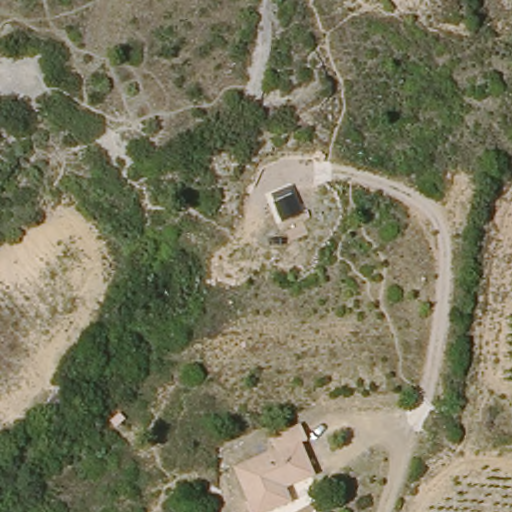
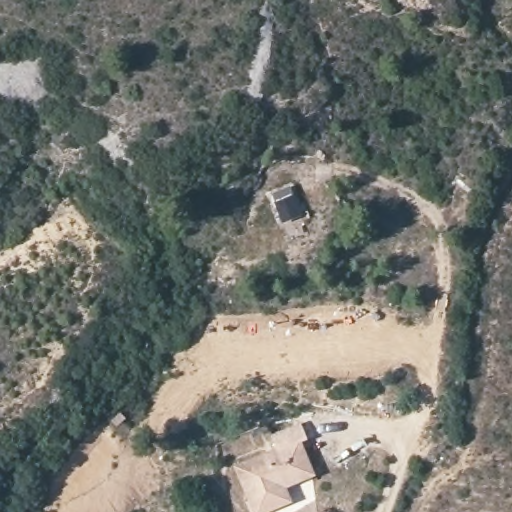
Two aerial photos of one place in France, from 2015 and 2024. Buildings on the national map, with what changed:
unchanged [(271,194),(294,186),(304,214),(281,222),(271,194)]
unchanged [(259,511),(238,465),(279,446),(275,436),(299,424),(305,436),(296,439),(309,469),(288,479),(295,494),(259,511)]

